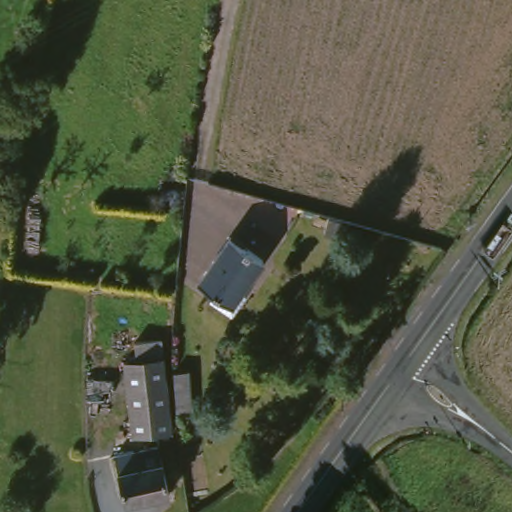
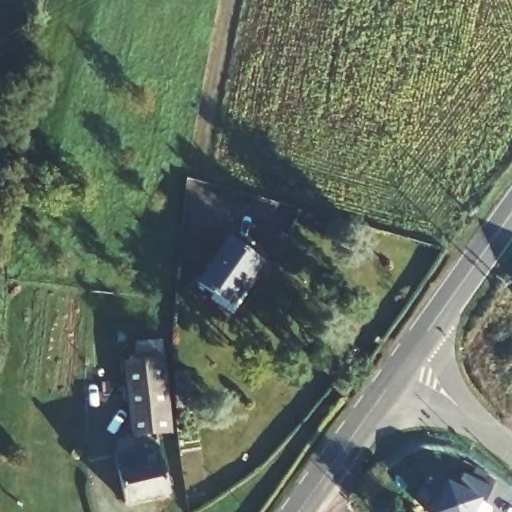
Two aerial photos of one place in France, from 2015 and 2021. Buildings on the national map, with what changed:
unchanged [(234,233),(270,258),(239,303),(202,279),(234,233)]
unchanged [(142,431),(138,406),(131,361),(166,355),(173,399),(178,424),(142,431)]
unchanged [(160,444),(168,492),(128,498),(121,448),(160,444)]
new [(458,486),(465,472),(494,486),(486,502),(481,499),(474,512),(434,512),(440,499),(427,492),(435,475),(458,486)]

